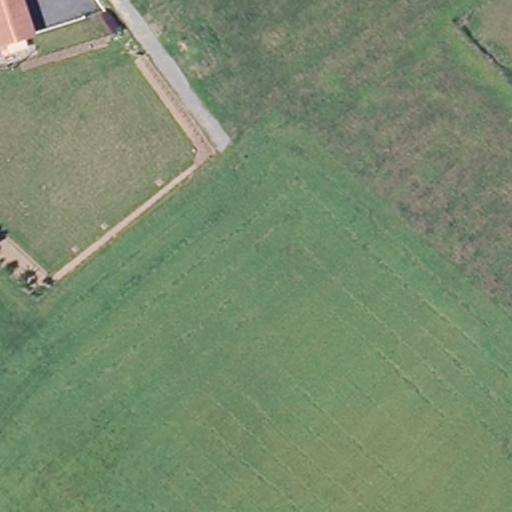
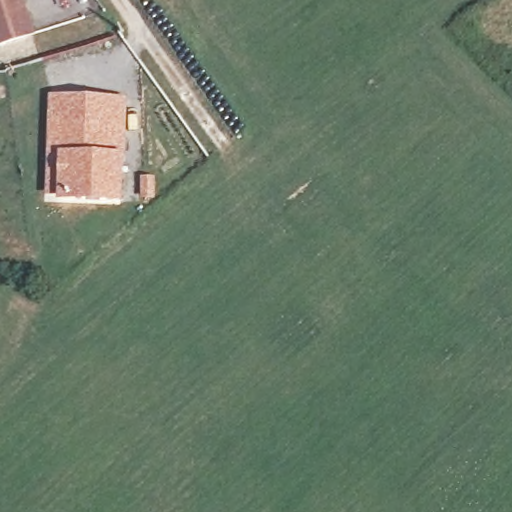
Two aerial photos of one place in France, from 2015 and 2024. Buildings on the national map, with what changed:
unchanged [(0,23),(0,0),(25,0),(34,26),(4,34),(0,23)]
new [(59,197),(44,197),(49,95),(128,97),(126,155),(124,205),(59,204),(59,197)]

